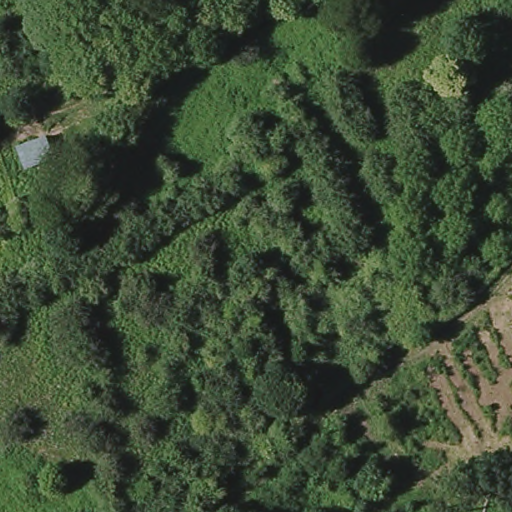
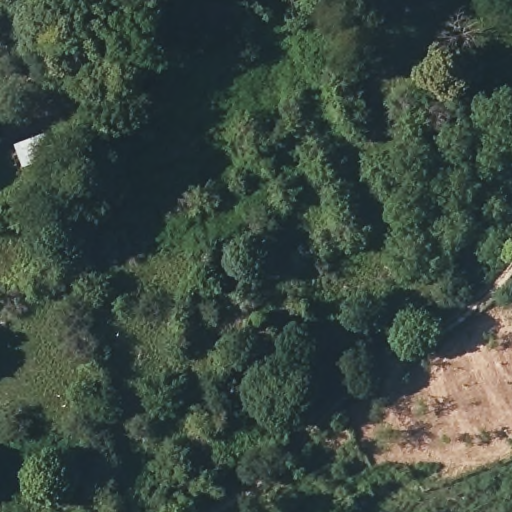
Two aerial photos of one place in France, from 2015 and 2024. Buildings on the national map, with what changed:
unchanged [(11,147),(43,135),(53,165),(23,174),(11,147)]

